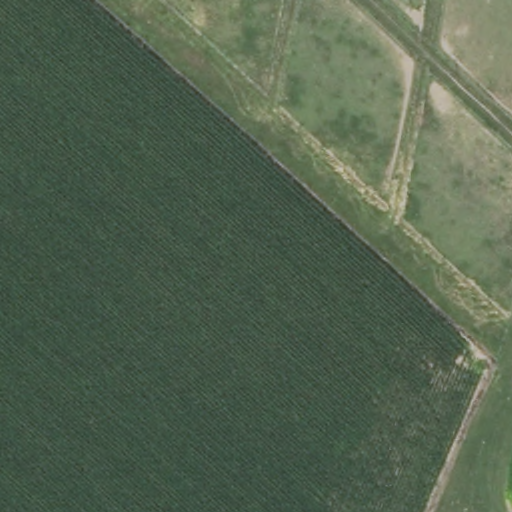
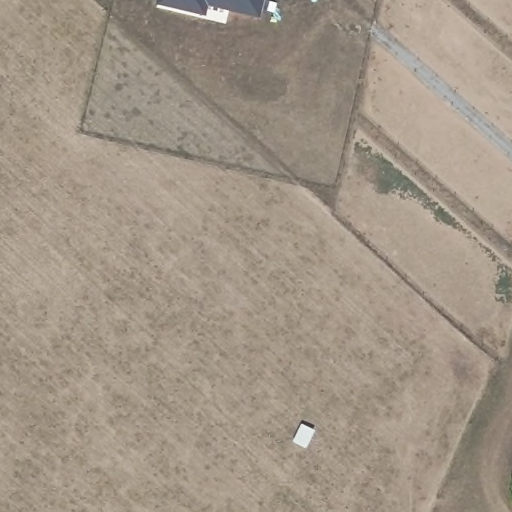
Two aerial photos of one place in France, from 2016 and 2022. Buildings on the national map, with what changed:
new [(202,13),(158,0),(206,0),(202,13)]
new [(257,16),(229,9),(230,5),(213,0),(262,0),(257,16)]

